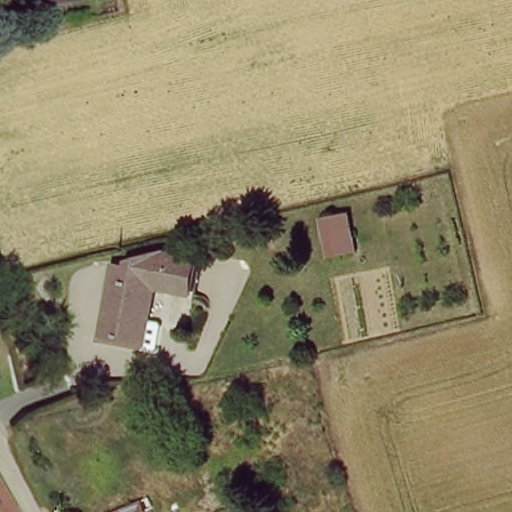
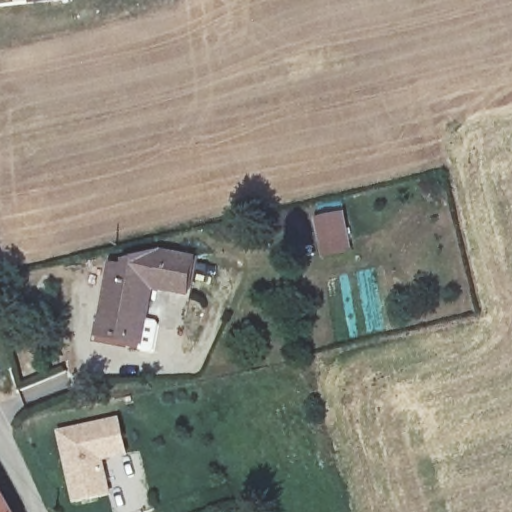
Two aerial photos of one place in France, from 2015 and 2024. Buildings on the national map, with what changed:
unchanged [(70,2),(29,5),(29,1),(28,0),(70,0),(70,2)]
unchanged [(347,207),(349,235),(316,239),(313,215),(347,207)]
unchanged [(120,274),(121,261),(148,256),(188,259),(185,299),(149,294),(143,344),(97,339),(103,274),(120,274)]
new [(119,416),(128,455),(105,461),(112,494),(72,503),(56,430),(119,416)]
unchanged [(0,512),(0,494),(10,512),(0,512)]

